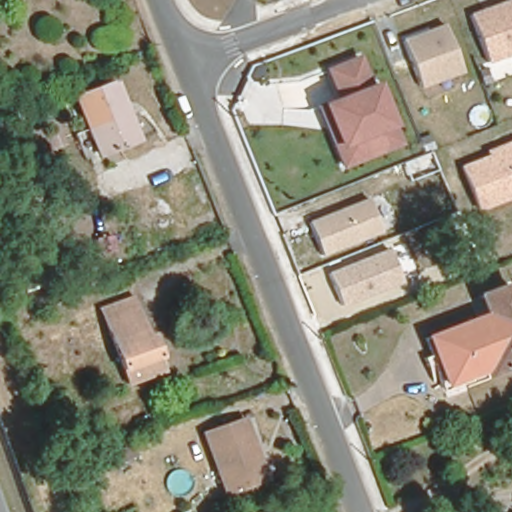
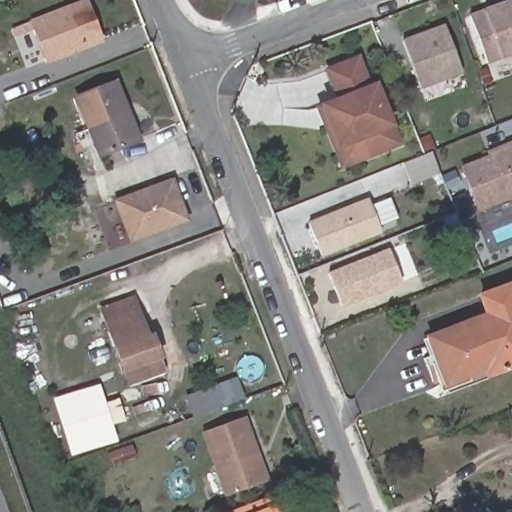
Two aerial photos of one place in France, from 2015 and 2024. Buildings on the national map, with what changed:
unchanged [(470,15),(508,0),(512,0),(512,57),(485,64),(470,15)]
new [(44,62),(30,23),(89,2),(102,40),(71,52),(64,54),(44,62)]
unchanged [(420,91),(400,41),(445,23),(462,74),(420,91)]
unchanged [(344,171),(318,106),(336,97),(325,69),(363,54),(403,146),(344,171)]
unchanged [(132,137),(96,152),(75,95),(111,80),(132,137)]
unchanged [(476,212),(458,165),(485,152),(483,147),(512,137),(512,198),(476,212)]
new [(113,199),(172,178),(188,221),(128,244),(113,199)]
unchanged [(308,222),(369,198),(385,234),(325,258),(308,222)]
unchanged [(343,307),(328,273),(388,247),(405,285),(343,307)]
unchanged [(512,296),(512,366),(486,376),(483,368),(440,382),(422,332),(483,310),(479,298),(509,288),(512,296)]
unchanged [(130,302),(143,337),(152,335),(160,356),(124,370),(102,312),(130,302)]
new [(235,378),(242,398),(192,417),(185,397),(235,378)]
new [(100,386),(116,442),(72,455),(54,399),(100,386)]
unchanged [(242,416),(263,478),(222,492),(200,431),(242,416)]
new [(231,512),(270,496),(273,502),(277,512),(231,512)]

